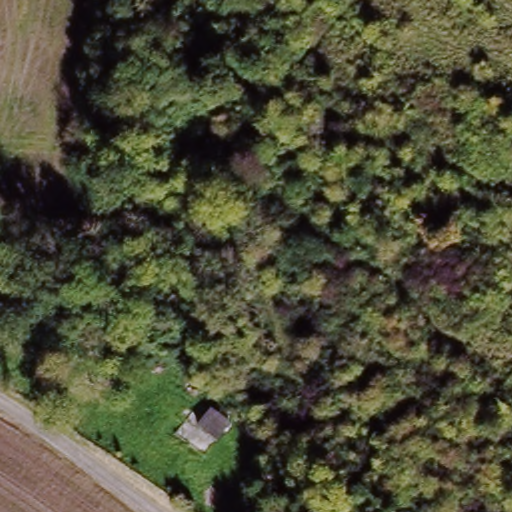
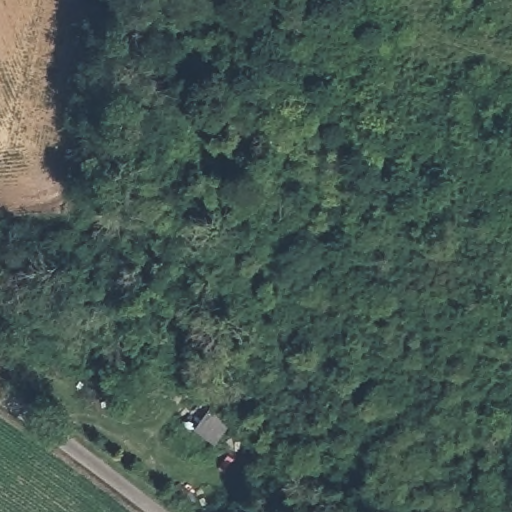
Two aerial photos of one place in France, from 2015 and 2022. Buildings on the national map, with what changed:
unchanged [(215,409),(235,420),(217,446),(198,432),(215,409)]

